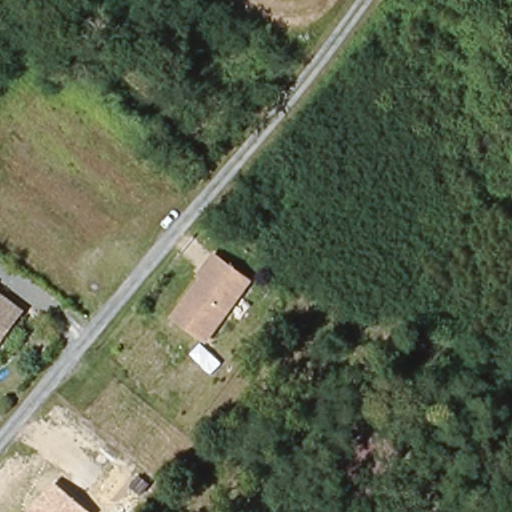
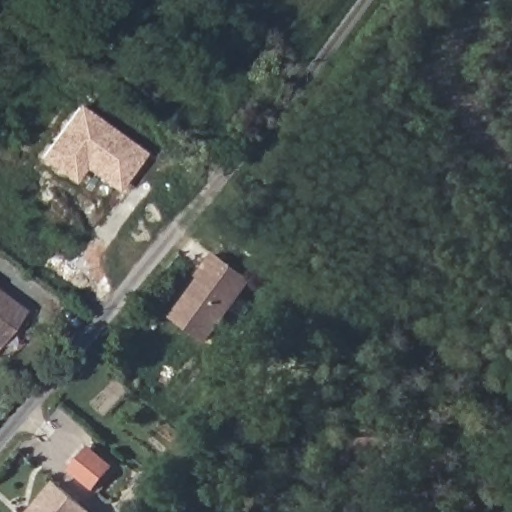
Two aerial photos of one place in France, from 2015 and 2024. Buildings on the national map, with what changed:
new [(147,154),(119,192),(84,167),(73,183),(37,157),(77,104),(147,154)]
unchanged [(254,280),(208,346),(167,319),(213,252),(254,280)]
unchanged [(0,345),(0,293),(24,311),(0,345)]
new [(402,454),(379,486),(376,483),(365,491),(337,470),(363,434),(377,432),(376,440),(396,449),(402,454)]
new [(92,490),(69,471),(91,444),(114,464),(92,490)]
unchanged [(56,481),(93,512),(29,512),(56,481)]

